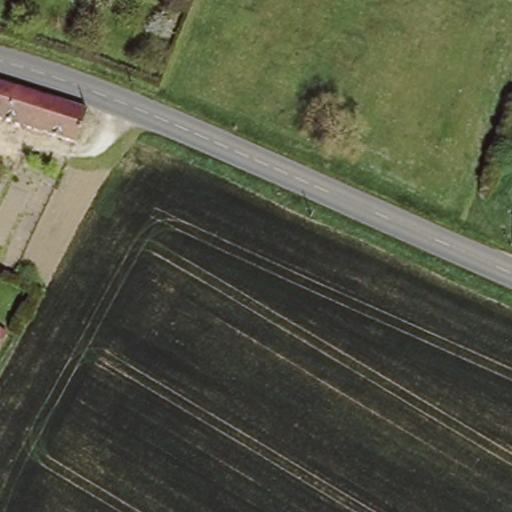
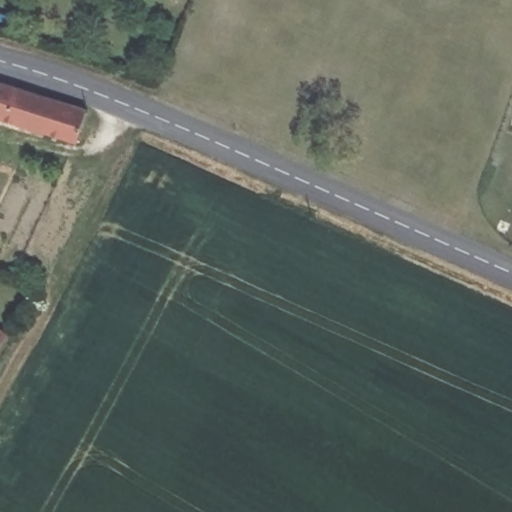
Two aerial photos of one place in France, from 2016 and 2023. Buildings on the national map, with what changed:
unchanged [(0,116),(0,85),(84,112),(75,136),(0,116)]
unchanged [(0,335),(0,328),(3,330),(0,335)]

